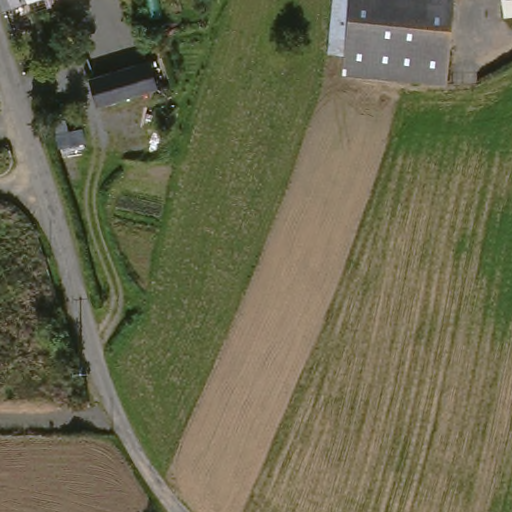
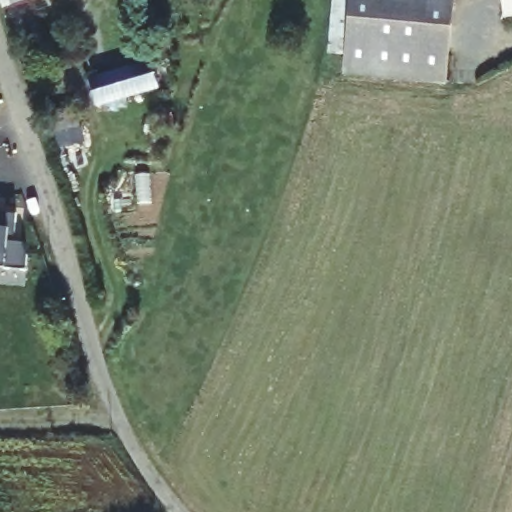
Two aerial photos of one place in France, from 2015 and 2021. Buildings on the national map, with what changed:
unchanged [(33,0),(11,7),(8,0),(33,0)]
unchanged [(464,0),(455,82),(348,70),(352,53),(333,52),(339,0),(464,0)]
unchanged [(156,88),(109,106),(107,78),(128,71),(153,62),(156,88)]
new [(14,241),(21,242),(26,254),(26,271),(7,268),(0,268),(0,215),(16,216),(14,241)]
demolished [(0,244),(0,218),(6,219),(0,244)]

